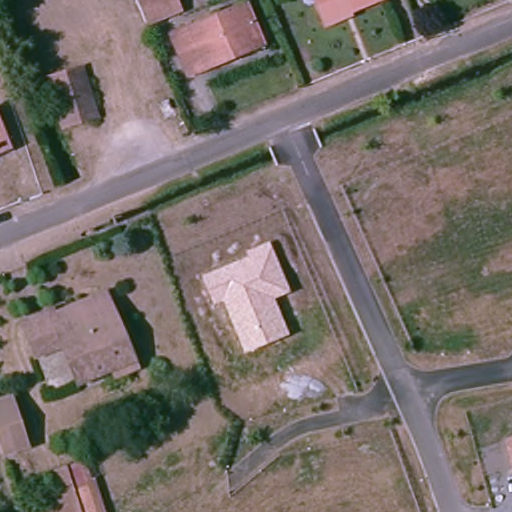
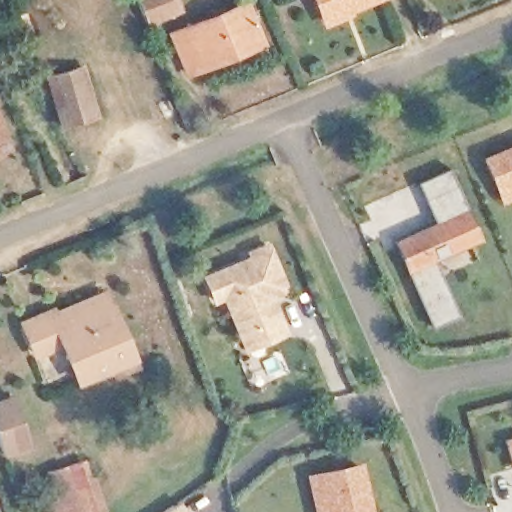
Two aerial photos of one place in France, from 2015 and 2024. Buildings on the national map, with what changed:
unchanged [(180,21),(147,36),(132,0),(170,0),(180,21)]
unchanged [(320,21),(311,0),(381,0),(382,5),(347,20),(323,29),(320,21)]
unchanged [(242,53),(185,77),(168,42),(239,11),(252,42),(255,48),(242,53)]
unchanged [(82,67),(96,114),(59,128),(42,79),(82,67)]
new [(512,146),(512,181),(497,187),(485,157),(512,146)]
unchanged [(0,148),(0,147),(1,148),(0,148)]
new [(427,197),(420,182),(417,183),(416,181),(449,166),(450,168),(447,169),(454,184),(477,236),(479,239),(481,237),(482,240),(472,244),(471,239),(450,249),(451,252),(436,258),(461,312),(446,319),(447,322),(436,326),(398,245),(397,241),(395,242),(393,240),(413,231),(437,220),(427,197)]
new [(512,181),(512,194),(502,199),(497,187),(512,181)]
unchanged [(245,250),(270,241),(289,292),(273,298),(290,335),(242,355),(223,302),(214,305),(202,275),(247,257),(245,250)]
unchanged [(115,381),(112,370),(74,383),(57,345),(30,356),(17,326),(99,293),(129,362),(131,371),(115,381)]
unchanged [(28,450),(2,458),(0,454),(0,398),(9,395),(28,450)]
unchanged [(503,439),(512,437),(512,469),(503,439)]
unchanged [(82,463),(89,481),(94,480),(101,512),(46,512),(37,482),(82,463)]
new [(374,512),(322,512),(313,475),(326,472),(363,463),(374,512)]
new [(184,512),(161,512),(177,502),(184,512)]

